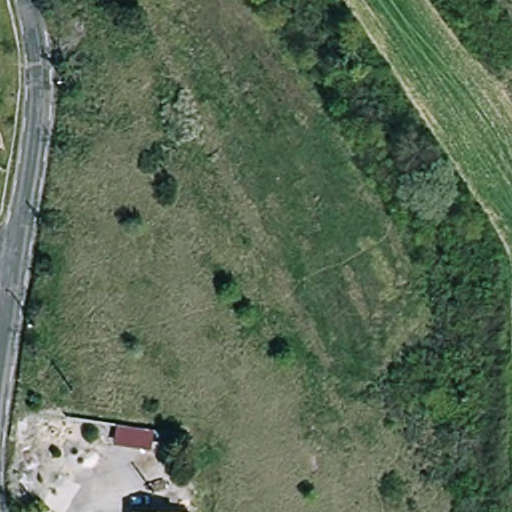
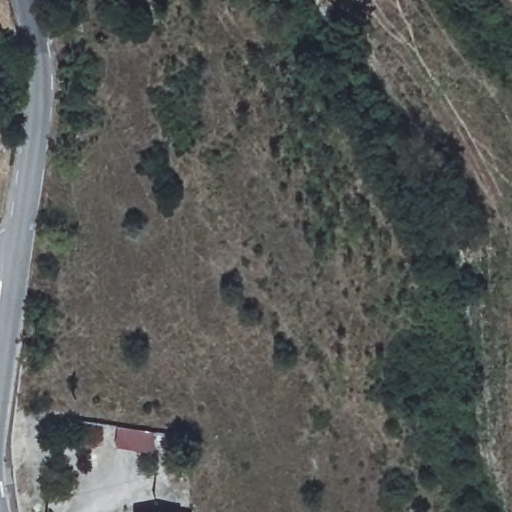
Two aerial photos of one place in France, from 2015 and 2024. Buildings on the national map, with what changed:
unchanged [(191,510),(191,512),(138,512),(138,509),(191,510)]

